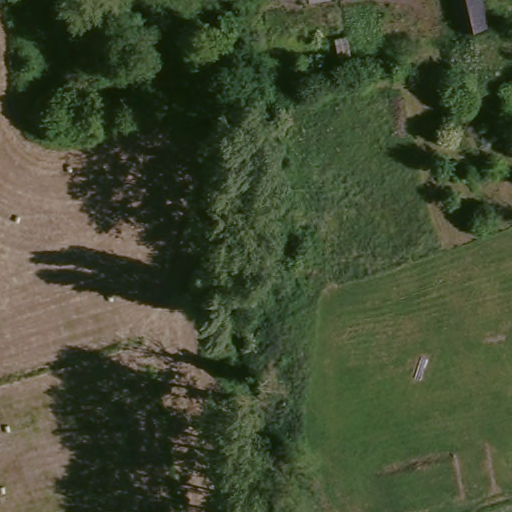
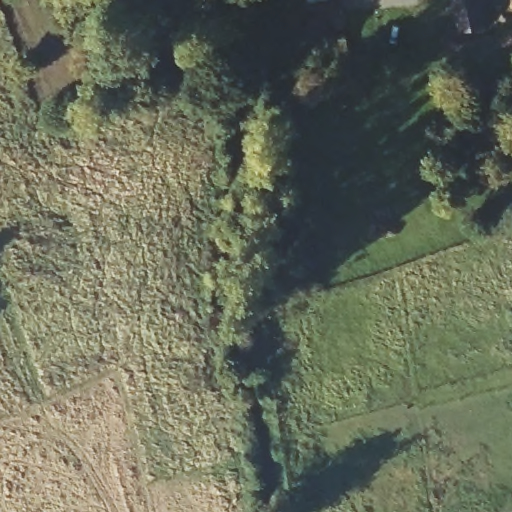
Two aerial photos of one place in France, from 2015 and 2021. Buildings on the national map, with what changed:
unchanged [(464,0),(495,0),(501,16),(502,21),(472,32),(464,0)]

